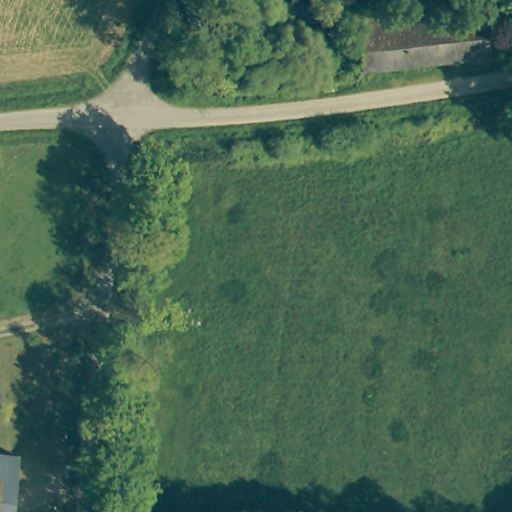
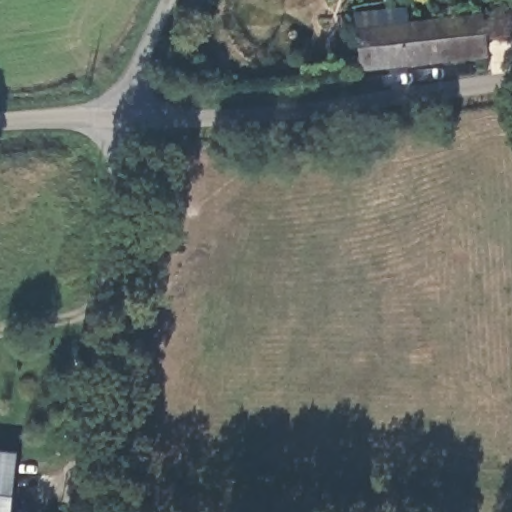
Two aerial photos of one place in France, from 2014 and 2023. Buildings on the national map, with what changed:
unchanged [(412,12),(413,27),(486,20),(490,62),(366,74),(361,17),(412,12)]
unchanged [(14,512),(0,512),(0,454),(20,456),(14,512)]

